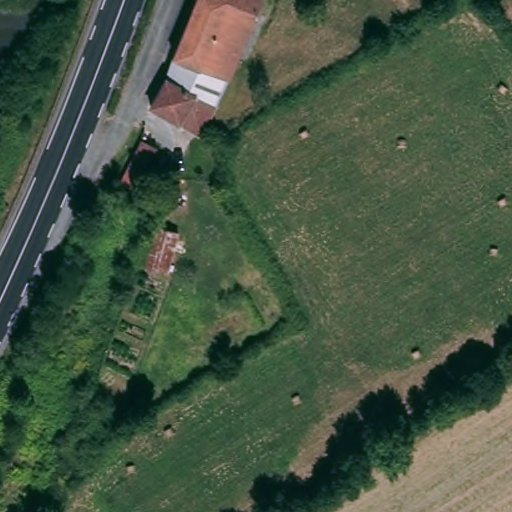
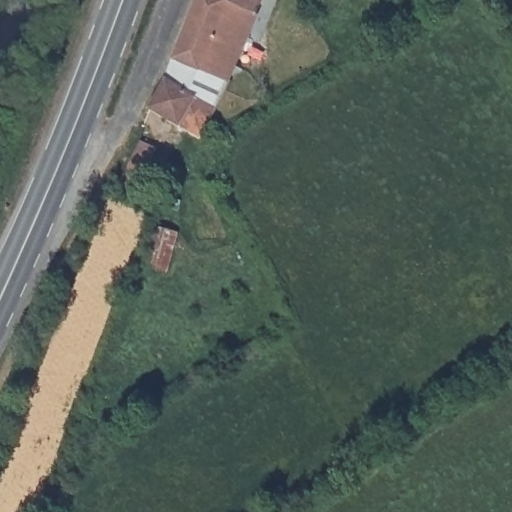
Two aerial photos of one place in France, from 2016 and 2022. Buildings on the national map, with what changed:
unchanged [(188,29),(199,0),(248,0),(260,5),(232,79),(183,57),(178,54),(188,29)]
unchanged [(248,0),(262,0),(260,5),(248,0)]
unchanged [(232,79),(221,102),(196,91),(172,79),(183,57),(232,79)]
unchanged [(172,79),(196,91),(221,102),(208,132),(159,107),(172,79)]
unchanged [(169,161),(149,199),(133,191),(153,154),(169,161)]

